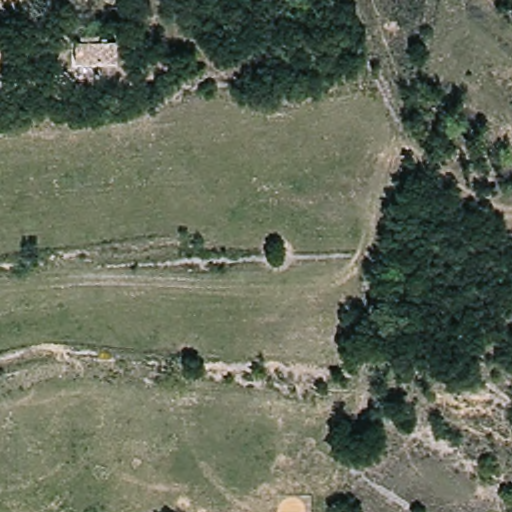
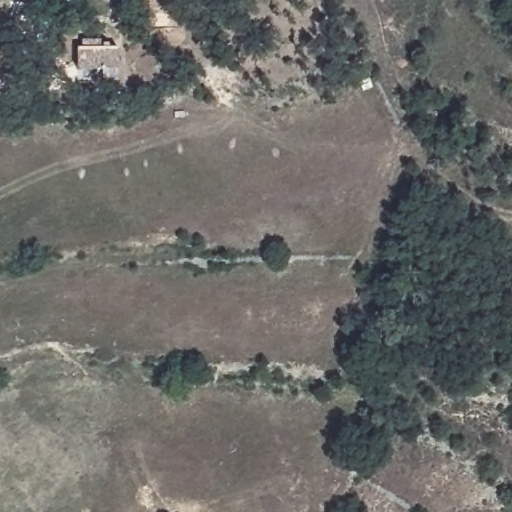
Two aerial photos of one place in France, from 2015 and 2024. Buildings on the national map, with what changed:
unchanged [(117,70),(77,69),(77,47),(117,48),(117,70)]

